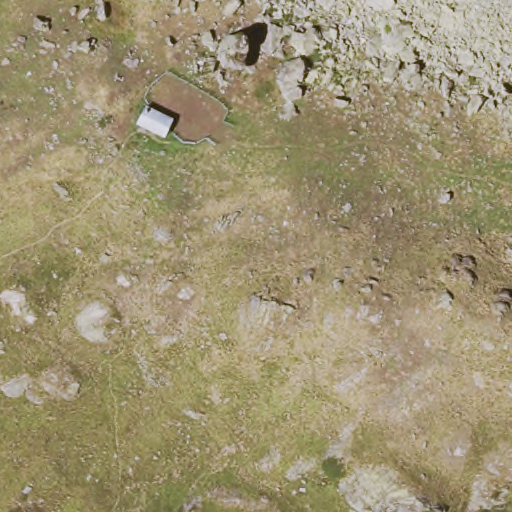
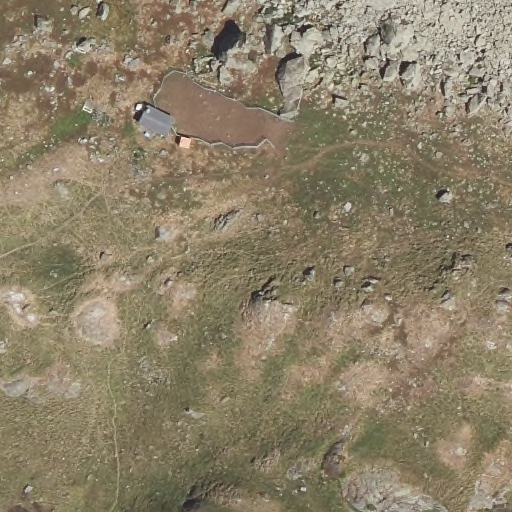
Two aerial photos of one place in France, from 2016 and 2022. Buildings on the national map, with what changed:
unchanged [(161,139),(143,130),(129,122),(140,102),(172,120),(161,139)]

